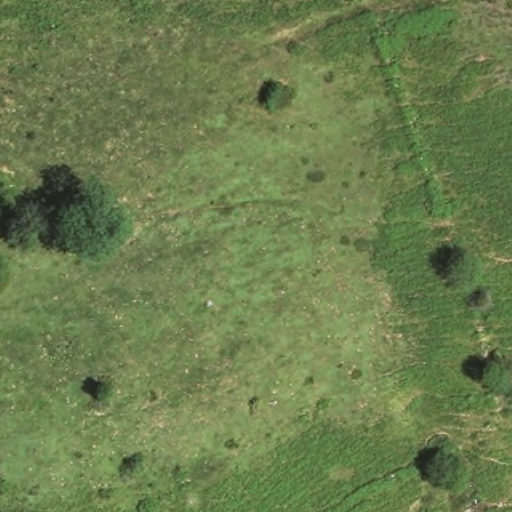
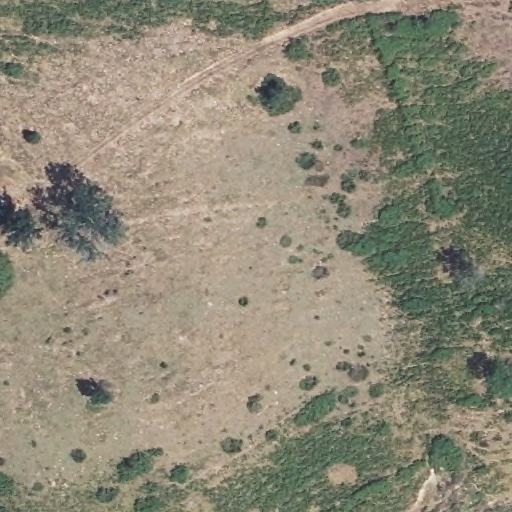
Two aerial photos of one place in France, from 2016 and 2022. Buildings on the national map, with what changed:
[]

